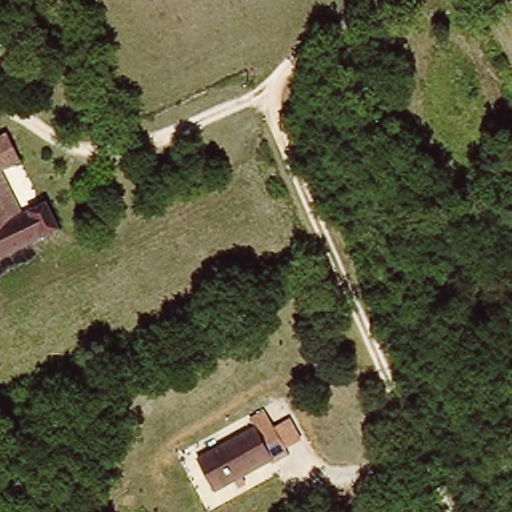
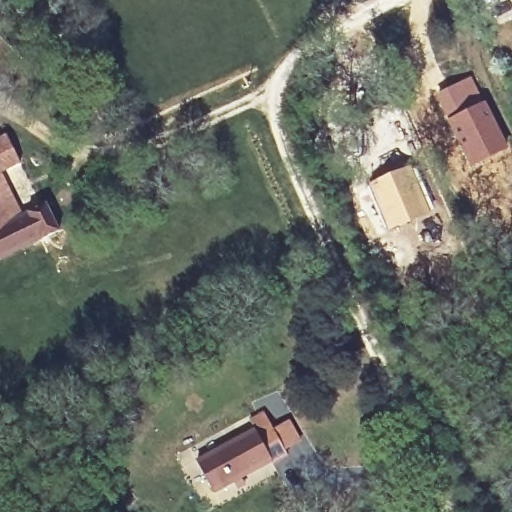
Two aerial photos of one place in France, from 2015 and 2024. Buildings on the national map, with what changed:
new [(471,74),(485,99),(446,119),(434,93),(471,74)]
new [(485,99),(510,146),(470,166),(446,119),(485,99)]
unchanged [(5,132),(20,160),(0,169),(0,135),(5,132)]
new [(414,162),(435,213),(385,232),(366,183),(414,162)]
unchanged [(55,228),(0,254),(0,177),(17,212),(42,199),(55,228)]
unchanged [(199,460),(275,422),(291,455),(215,491),(199,460)]

